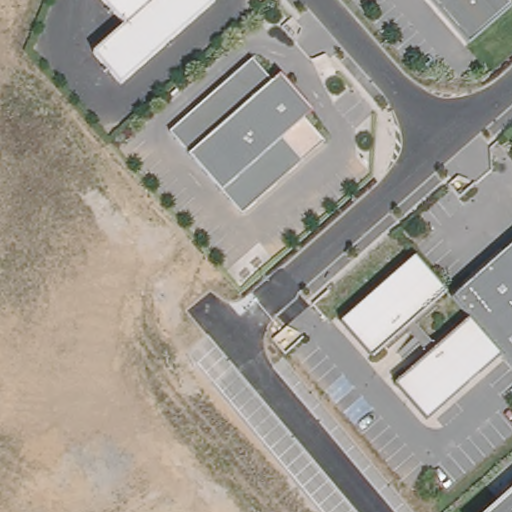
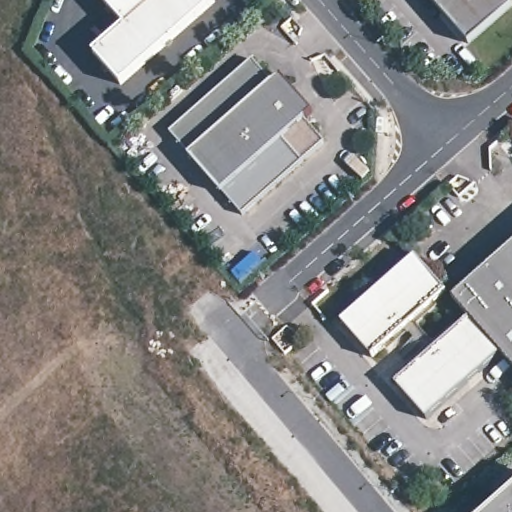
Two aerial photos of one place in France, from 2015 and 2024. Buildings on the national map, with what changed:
unchanged [(218,2),(123,87),(91,52),(125,25),(104,0),(216,0),(218,2)]
unchanged [(471,41),(434,0),(512,0),(512,6),(471,41)]
unchanged [(277,82),(284,77),(314,113),(308,118),(330,145),(242,215),(169,131),(257,57),(277,82)]
unchanged [(501,353),(427,421),(396,381),(471,318),(453,296),(512,247),(512,367),(501,353)]
unchanged [(341,323),(418,256),(447,295),(372,357),(341,323)]
unchanged [(488,512),(512,491),(512,512),(488,512)]

